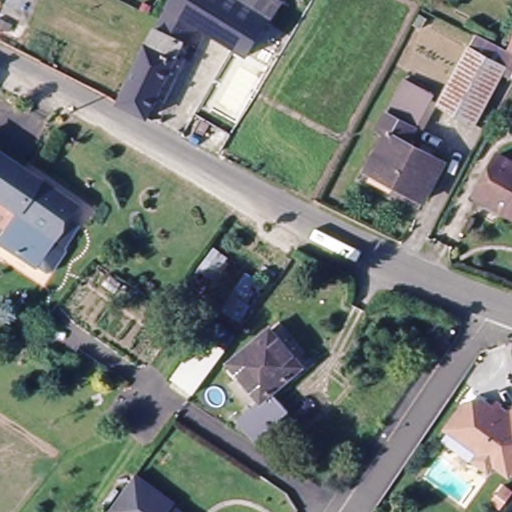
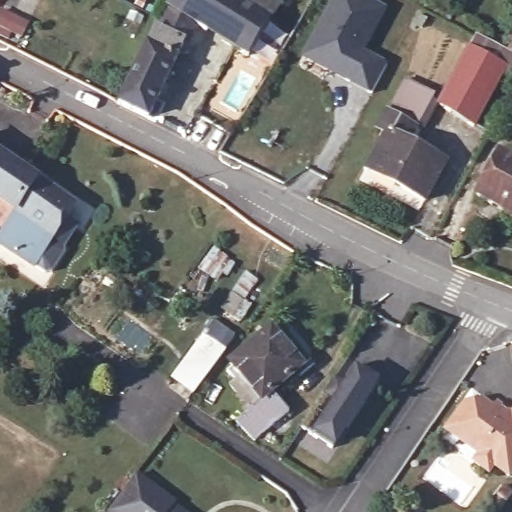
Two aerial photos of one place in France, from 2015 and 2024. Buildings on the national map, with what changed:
unchanged [(170,0),(282,0),(247,55),(197,24),(187,41),(185,40),(182,46),(154,31),(159,20),(170,0)]
new [(332,0),(369,0),(384,8),(361,51),(386,64),(371,92),(345,78),(347,75),(305,52),(332,0)]
new [(20,35),(0,26),(0,10),(26,22),(20,35)]
unchanged [(154,31),(182,46),(177,58),(150,117),(117,102),(145,49),(154,31)]
unchanged [(487,102),(475,125),(439,106),(477,34),(508,49),(512,41),(512,73),(505,70),(487,102)]
unchanged [(445,161),(423,200),(367,169),(387,132),(378,127),(386,112),(389,113),(405,81),(430,95),(430,96),(438,100),(423,128),(415,124),(405,140),(445,161)]
unchanged [(62,246),(63,255),(53,269),(42,272),(0,242),(0,154),(75,205),(66,217),(76,225),(62,246)]
unchanged [(478,194),(500,154),(512,160),(512,213),(478,194)]
unchanged [(236,325),(220,313),(245,277),(262,287),(236,325)]
unchanged [(271,332),(305,371),(270,398),(286,417),(253,444),(236,425),(250,414),(228,387),(238,380),(227,366),(271,332)]
unchanged [(214,370),(192,400),(170,383),(202,338),(225,355),(214,370)]
unchanged [(310,410),(323,418),(335,401),(322,392),(330,380),(343,388),(357,366),(376,378),(330,449),(298,428),(310,410)]
unchanged [(466,400),(483,397),(492,403),(495,397),(511,409),(512,407),(512,467),(510,471),(495,461),(490,470),(474,458),(480,450),(465,438),(448,427),(466,400)]
unchanged [(190,512),(113,512),(111,511),(137,474),(180,505),(190,512)]
unchanged [(512,490),(512,493),(500,509),(490,502),(505,484),(512,490)]

